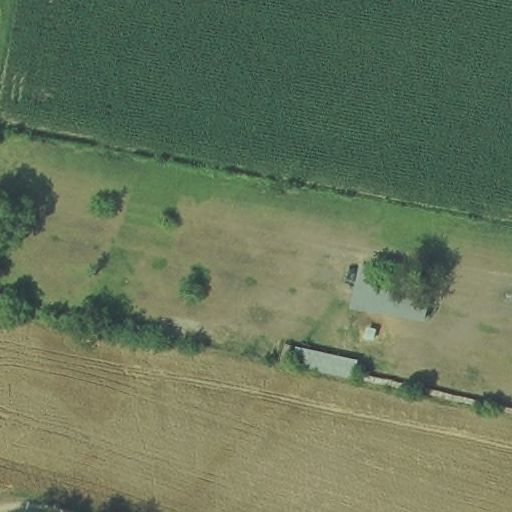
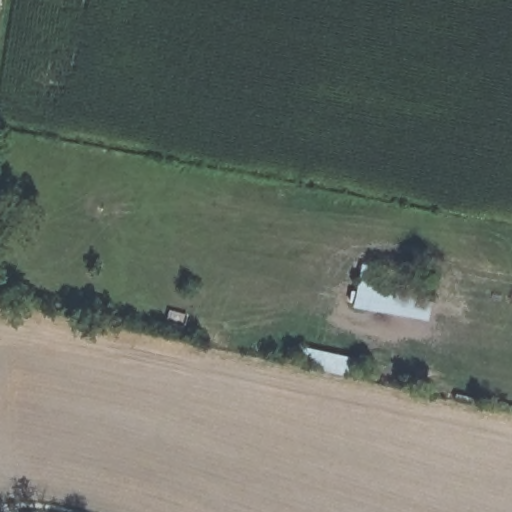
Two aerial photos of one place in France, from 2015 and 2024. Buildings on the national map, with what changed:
unchanged [(365,267),(446,278),(436,326),(359,313),(365,267)]

